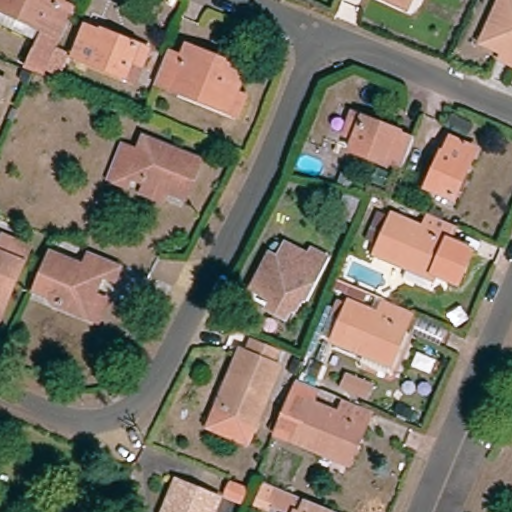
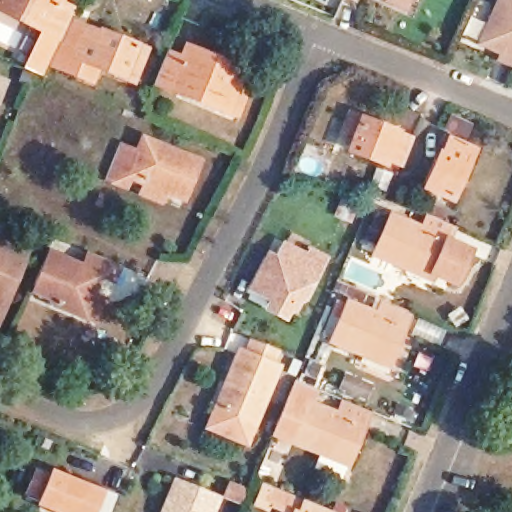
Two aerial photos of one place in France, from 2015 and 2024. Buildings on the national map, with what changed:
unchanged [(37,34),(0,15),(0,0),(57,0),(56,0),(54,8),(69,14),(36,83),(22,77),(18,75),(37,34)]
unchanged [(508,64),(495,59),(497,55),(476,47),(472,45),(488,9),(492,0),(512,0),(512,56),(508,64)]
unchanged [(132,84),(122,80),(76,61),(86,35),(98,40),(100,35),(135,49),(144,54),(132,84)]
unchanged [(240,124),(228,119),(159,91),(170,61),(185,68),(187,62),(190,55),(230,71),(245,77),(236,98),(249,104),(240,124)]
unchanged [(0,103),(0,79),(9,82),(0,103)]
unchanged [(383,169),(347,155),(351,144),(340,139),(347,121),(358,125),(409,145),(400,168),(385,163),(383,169)]
unchanged [(450,139),(476,151),(455,199),(428,188),(450,139)]
unchanged [(145,207),(150,194),(130,187),(126,194),(104,186),(117,153),(139,161),(144,149),(200,171),(186,209),(171,203),(166,215),(145,207)]
unchanged [(401,271),(371,258),(388,219),(418,233),(425,218),(450,229),(443,244),(468,255),(455,285),(431,275),(428,283),(401,271)]
unchanged [(0,258),(5,260),(11,243),(35,253),(11,311),(6,324),(0,322),(0,258)]
unchanged [(272,254),(280,258),(286,244),(309,256),(312,249),(325,256),(305,297),(299,299),(295,308),(287,309),(272,302),(270,295),(255,287),(272,254)]
unchanged [(107,328),(97,324),(69,312),(40,300),(45,288),(57,259),(98,277),(105,259),(135,271),(129,289),(115,283),(105,303),(115,308),(107,328)]
unchanged [(361,359),(332,347),(348,310),(376,323),(383,305),(410,317),(391,361),(387,371),(361,359)]
unchanged [(211,423),(217,404),(227,378),(237,351),(247,354),(255,335),(276,344),(270,362),(277,364),(258,419),(250,437),(211,423)]
unchanged [(319,449),(291,438),(307,399),(336,413),(344,395),(368,405),(348,451),(344,461),(319,449)]
new [(35,465),(49,471),(50,468),(107,490),(97,512),(52,512),(21,498),(35,465)]
unchanged [(241,512),(222,506),(230,486),(247,493),(241,512)]
unchanged [(170,487),(215,504),(212,512),(160,512),(170,487)]
new [(107,490),(117,494),(110,512),(97,512),(107,490)]
unchanged [(272,511),(265,507),(269,494),(277,498),(312,512),(276,512),(272,511)]

